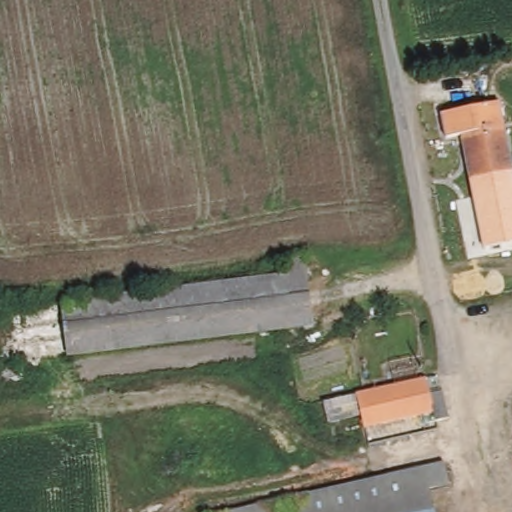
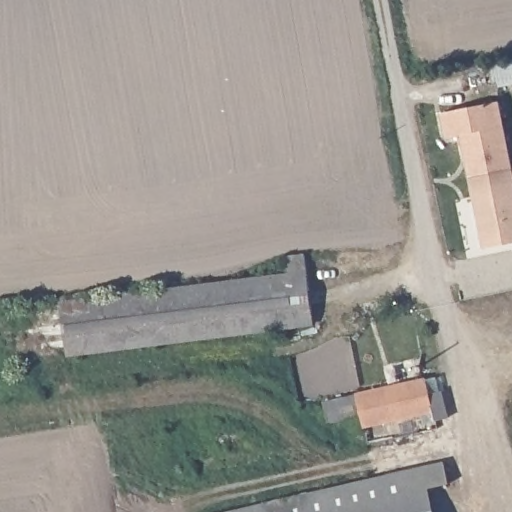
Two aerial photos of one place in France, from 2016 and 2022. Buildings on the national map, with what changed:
unchanged [(443,119),(500,107),(512,169),(512,247),(484,252),(471,184),(463,141),(447,144),(443,119)]
unchanged [(290,276),(287,257),(304,256),(313,325),(7,362),(0,311),(290,276)]
unchanged [(423,380),(427,396),(442,392),(448,419),(435,422),(432,411),(332,434),(328,417),(311,420),(308,406),(423,380)]
unchanged [(512,445),(512,454),(510,445),(512,445)]
unchanged [(443,462),(448,486),(427,491),(432,512),(230,512),(443,462)]

